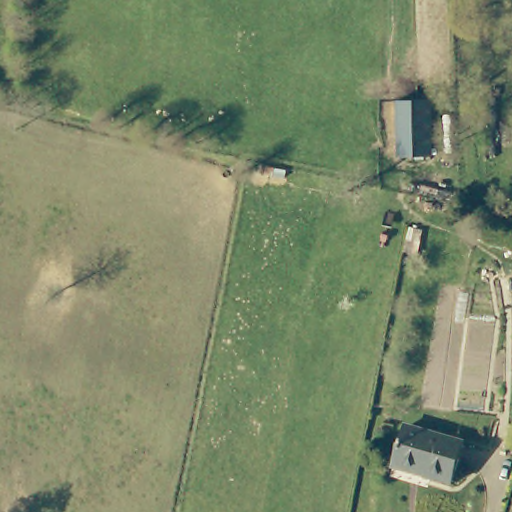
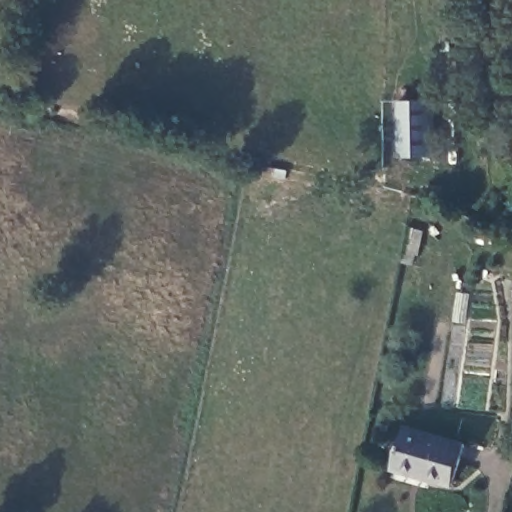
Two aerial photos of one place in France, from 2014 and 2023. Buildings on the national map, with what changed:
unchanged [(432,95),(437,153),(398,154),(398,96),(432,95)]
unchanged [(461,438),(450,478),(394,464),(404,422),(461,438)]

